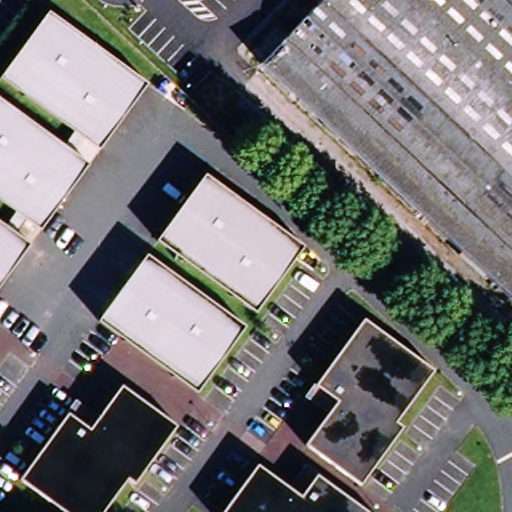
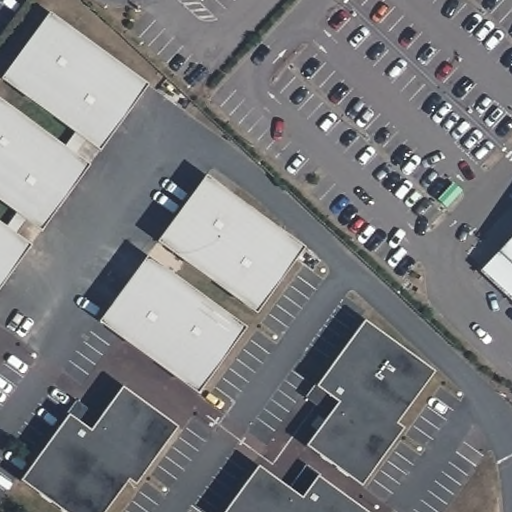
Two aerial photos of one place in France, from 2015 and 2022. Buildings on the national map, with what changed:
demolished [(512,0),(512,304),(186,0),(512,0)]
unchanged [(53,14),(151,89),(103,153),(6,80),(53,14)]
unchanged [(89,172),(45,237),(0,203),(0,106),(89,172)]
unchanged [(208,186),(303,254),(259,317),(162,244),(208,186)]
unchanged [(30,252),(0,293),(0,229),(30,252)]
new [(498,250),(512,235),(512,301),(480,271),(498,250)]
unchanged [(149,262),(246,334),(204,394),(103,325),(149,262)]
unchanged [(361,326),(437,375),(400,427),(407,433),(362,492),(308,453),(340,406),(318,389),(361,326)]
unchanged [(80,407),(101,420),(120,392),(177,432),(134,493),(126,487),(110,512),(61,512),(22,483),(80,407)]
unchanged [(260,473),(290,492),(305,472),(320,484),(360,512),(233,512),(260,473)]

